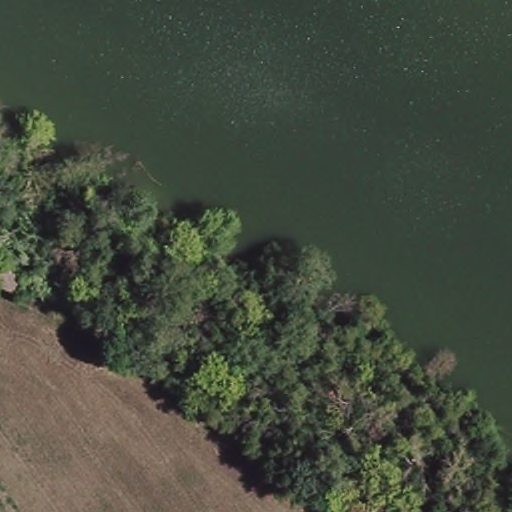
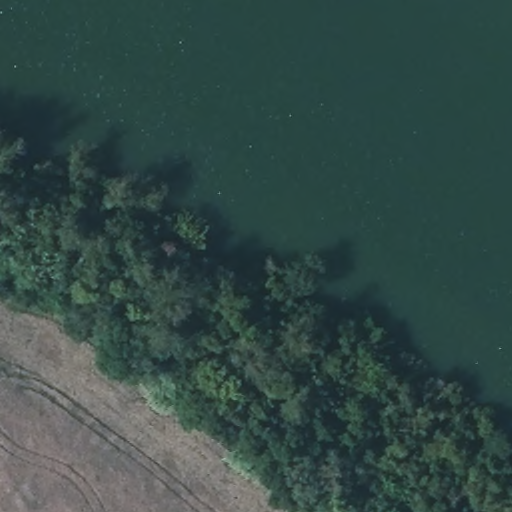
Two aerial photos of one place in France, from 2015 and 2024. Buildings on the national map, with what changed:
unchanged [(13,287),(0,280),(0,248),(26,264),(13,287)]

